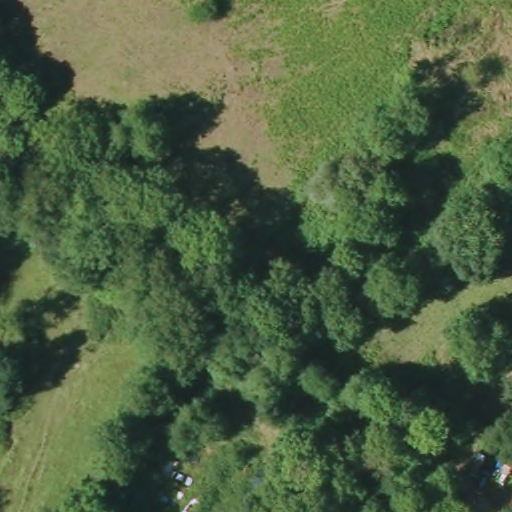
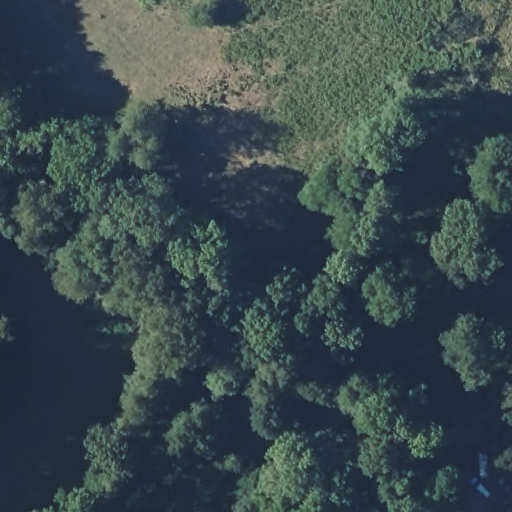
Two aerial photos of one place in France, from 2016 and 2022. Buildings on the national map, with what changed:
unchanged [(445,512),(404,512),(415,495),(434,501),(445,512)]

